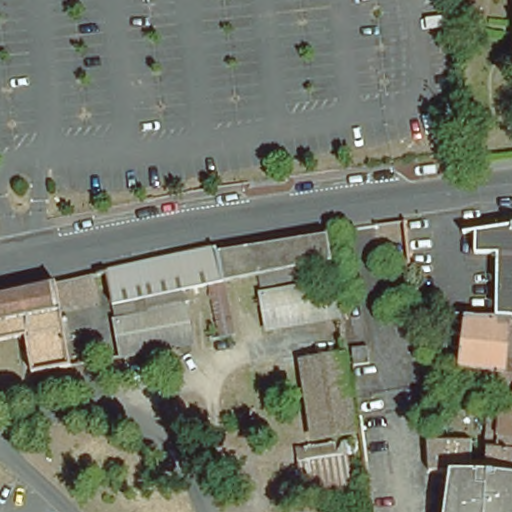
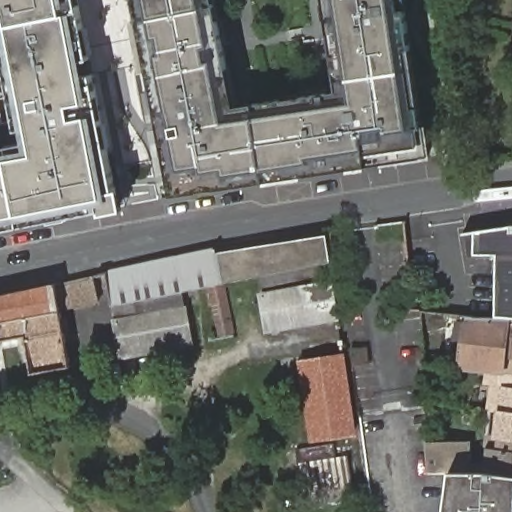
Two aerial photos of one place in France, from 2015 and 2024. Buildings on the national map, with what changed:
new [(6,146),(27,144),(24,129),(17,129),(0,42),(0,0),(78,0),(80,11),(89,59),(83,60),(87,76),(92,75),(115,190),(121,189),(125,210),(101,214),(100,210),(21,227),(0,231),(0,154),(6,153),(6,146)]
new [(367,167),(270,181),(173,195),(170,171),(162,172),(155,127),(161,126),(150,71),(143,73),(132,19),(139,19),(135,0),(215,0),(216,6),(236,107),(255,106),(338,93),(325,0),(405,0),(406,10),(424,123),(432,157),(367,167)]
unchanged [(486,224),(510,225),(512,226),(512,317),(490,316),(490,254),(470,254),(473,227),(486,224)]
unchanged [(330,230),(333,261),(335,273),(260,288),(257,275),(222,281),(233,336),(220,339),(209,284),(182,289),(191,342),(121,352),(114,309),(106,270),(204,250),(330,230)]
unchanged [(92,278),(96,304),(59,312),(54,286),(92,278)]
unchanged [(267,328),(261,295),(329,284),(335,316),(267,328)]
unchanged [(59,312),(70,370),(30,377),(24,342),(0,346),(0,298),(54,286),(59,312)]
unchanged [(511,353),(501,352),(500,367),(500,370),(485,368),(458,365),(461,314),(471,315),(490,316),(512,317),(512,353),(511,353)]
unchanged [(355,346),(371,345),(373,361),(357,362),(355,346)]
unchanged [(499,374),(498,380),(483,378),(485,368),(500,370),(500,367),(501,352),(511,353),(512,353),(512,376),(499,374)]
unchanged [(357,430),(315,436),(305,363),(347,357),(357,430)]
unchanged [(444,363),(443,375),(422,373),(421,361),(444,363)]
unchanged [(510,438),(487,433),(488,409),(497,410),(498,406),(510,408),(512,382),(512,439),(510,438)]
unchanged [(485,469),(485,471),(447,470),(427,469),(426,439),(470,439),(470,463),(485,463),(487,433),(510,438),(512,439),(512,474),(485,469)]
unchanged [(296,450),(332,445),(335,461),(350,458),(356,499),(305,506),(296,450)]
unchanged [(443,512),(447,470),(485,471),(485,469),(512,474),(512,512),(443,512)]

